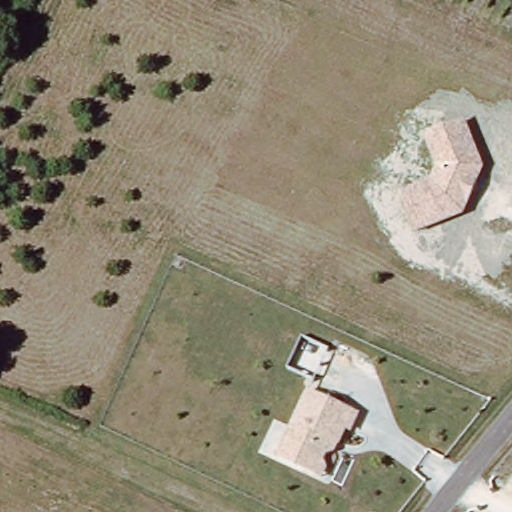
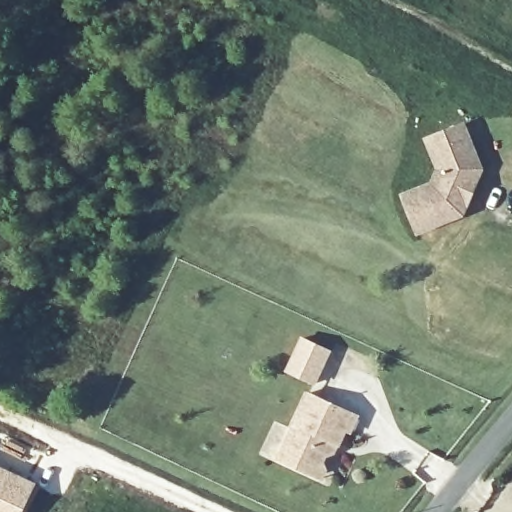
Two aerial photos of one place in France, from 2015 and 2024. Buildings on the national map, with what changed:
unchanged [(484,171),(464,217),(417,235),(403,192),(431,180),(437,169),(424,138),(465,122),(484,171)]
new [(301,336),(332,350),(316,386),(284,372),(301,336)]
unchanged [(320,480),(282,462),(313,396),(362,419),(355,435),(350,433),(343,448),(325,482),(320,480)]
new [(37,482),(23,512),(0,512),(0,465),(37,482)]

